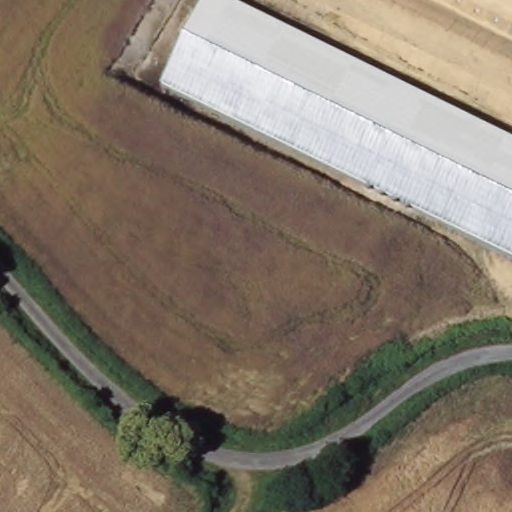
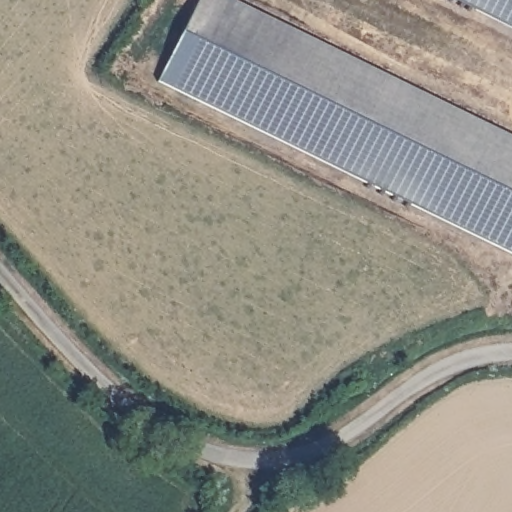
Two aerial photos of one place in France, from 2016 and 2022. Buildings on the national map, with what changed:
unchanged [(512,255),(162,80),(201,0),(235,0),(512,138),(512,255)]
new [(512,0),(512,30),(453,0),(512,0)]

